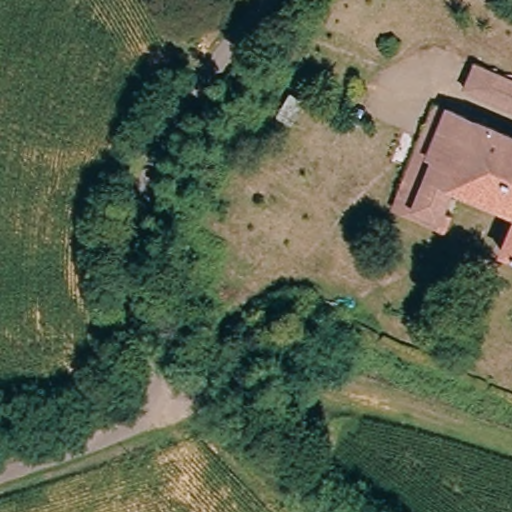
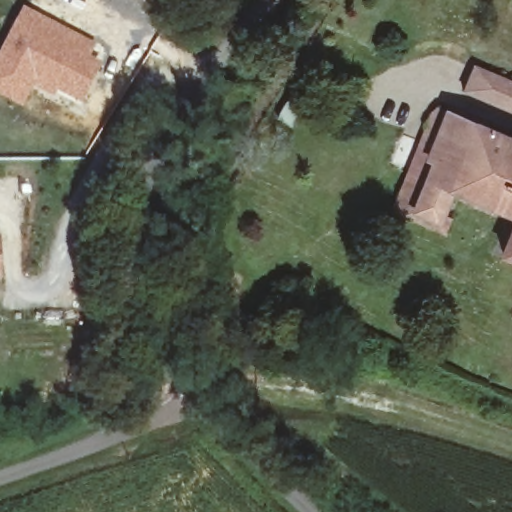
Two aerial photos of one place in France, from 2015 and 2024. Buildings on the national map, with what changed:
new [(22,3),(98,41),(90,56),(104,62),(84,105),(56,90),(52,96),(34,87),(23,109),(0,96),(0,46),(22,3)]
unchanged [(207,10),(201,19),(192,13),(199,4),(207,10)]
unchanged [(512,80),(512,110),(468,91),(478,66),(512,80)]
unchanged [(512,213),(450,187),(436,216),(409,205),(428,160),(418,156),(426,135),(433,137),(445,109),(512,137),(512,213)]
unchanged [(512,217),(512,256),(499,250),(512,217)]
new [(0,278),(0,233),(1,277),(0,278)]

